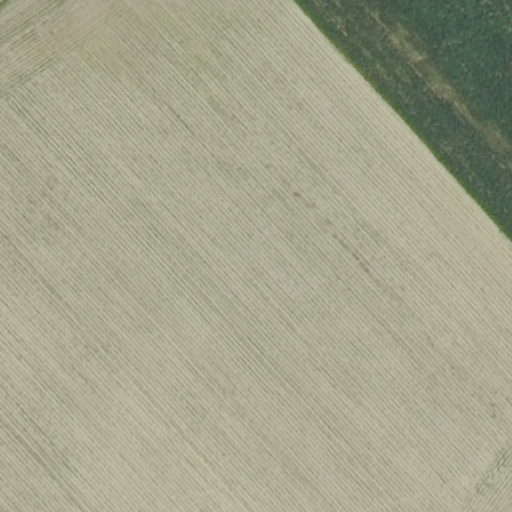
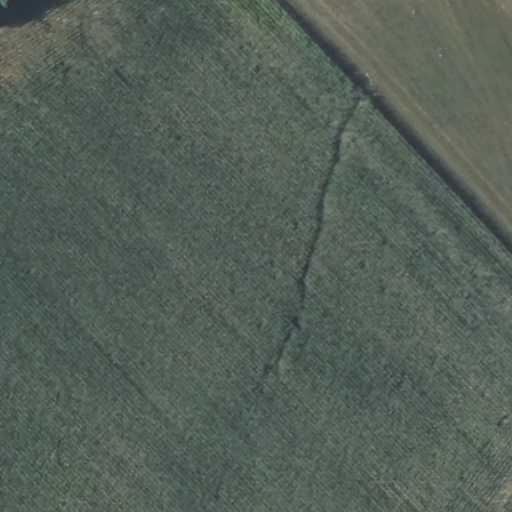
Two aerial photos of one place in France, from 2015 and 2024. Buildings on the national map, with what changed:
[]

